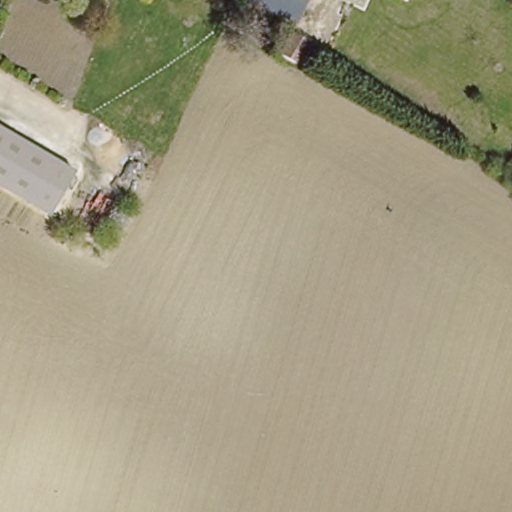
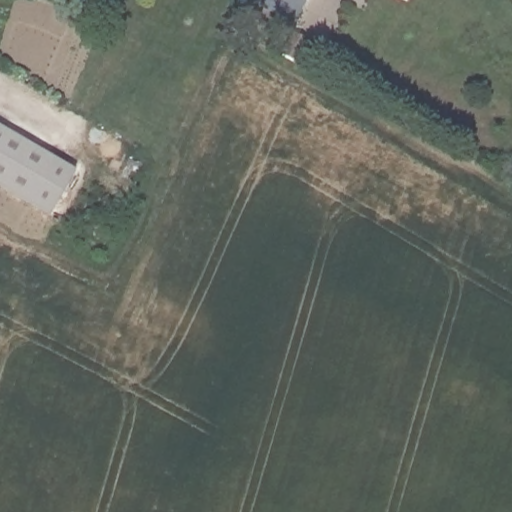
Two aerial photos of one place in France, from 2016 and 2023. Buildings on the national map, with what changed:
unchanged [(253,0),(310,0),(301,20),(253,0)]
unchanged [(297,31),(312,39),(299,65),(285,57),(297,31)]
unchanged [(51,219),(0,191),(0,121),(80,171),(51,219)]

